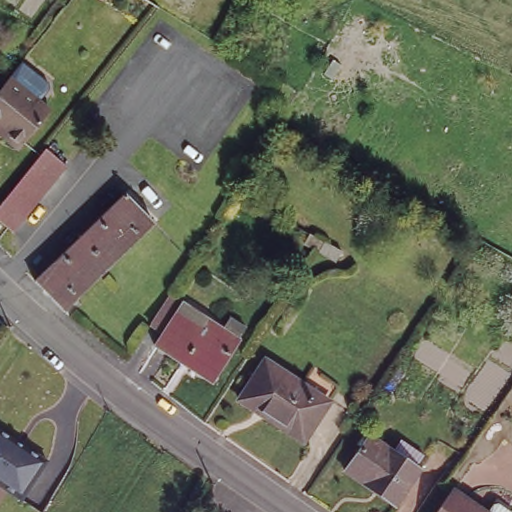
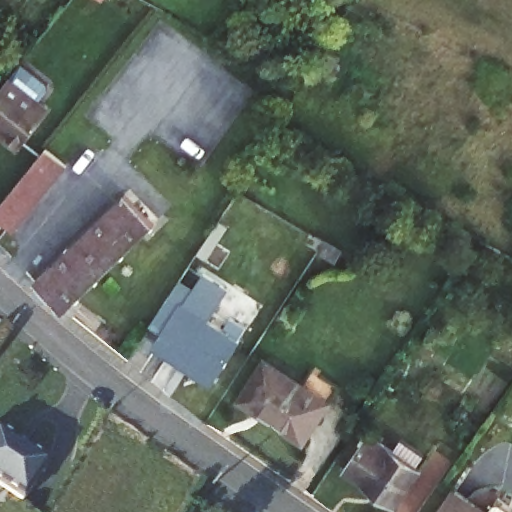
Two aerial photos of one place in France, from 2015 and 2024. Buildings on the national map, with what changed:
unchanged [(16,138),(0,126),(0,75),(4,69),(45,102),(16,138)]
unchanged [(9,225),(0,218),(0,193),(41,141),(63,159),(9,225)]
unchanged [(126,187),(155,220),(63,307),(34,275),(126,187)]
unchanged [(344,253),(339,263),(319,251),(326,241),(344,253)]
unchanged [(220,321),(236,332),(232,338),(234,340),(210,376),(181,356),(176,361),(151,344),(158,332),(145,324),(164,294),(178,302),(203,320),(216,327),(220,321)]
unchanged [(301,438),(237,394),(264,355),(328,398),(301,438)]
unchanged [(392,498),(342,463),(366,427),(416,462),(392,498)]
unchanged [(0,486),(0,428),(48,460),(24,502),(0,486)]
unchanged [(447,488),(480,512),(431,512),(447,488)]
unchanged [(493,501),(507,512),(486,512),(493,501)]

